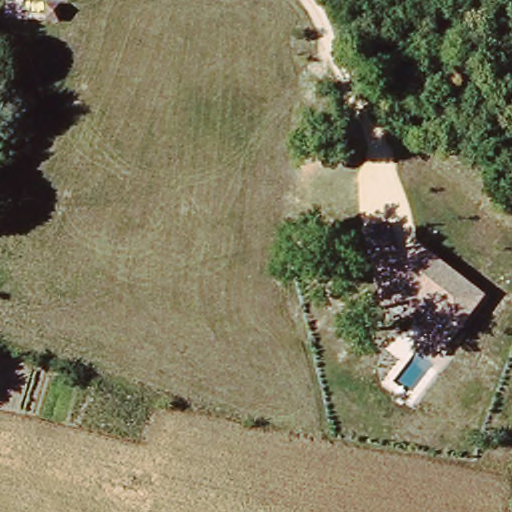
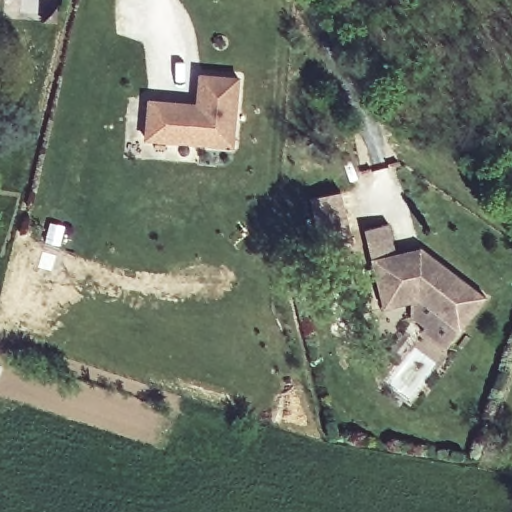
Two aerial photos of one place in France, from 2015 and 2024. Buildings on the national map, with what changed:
unchanged [(59,3),(58,19),(47,19),(45,18),(46,3),(50,3),(59,3)]
new [(235,149),(145,142),(148,99),(196,103),(197,73),(240,77),(235,149)]
new [(343,191),(352,244),(320,251),(310,198),(343,191)]
unchanged [(485,300),(457,334),(418,303),(381,310),(362,232),(386,226),(396,264),(407,263),(419,250),(485,300)]

